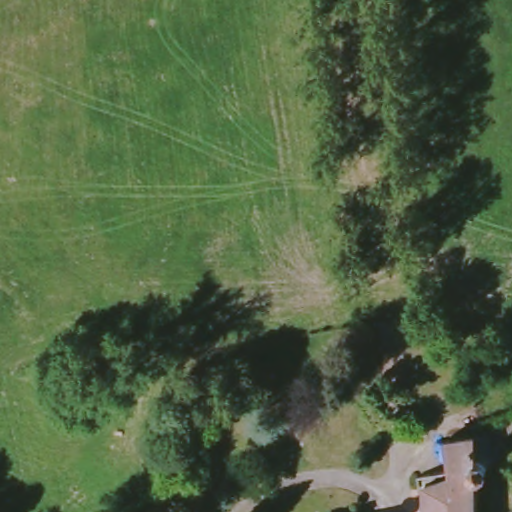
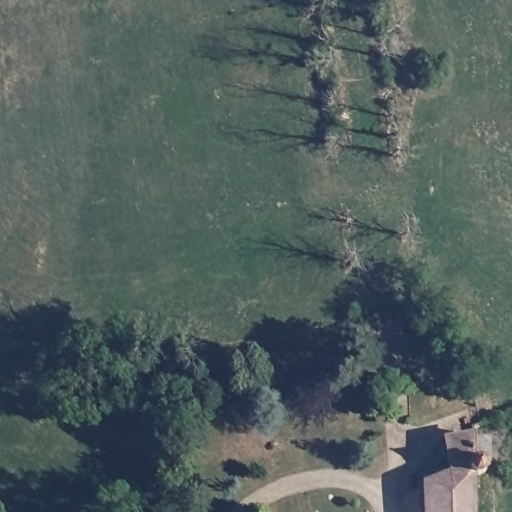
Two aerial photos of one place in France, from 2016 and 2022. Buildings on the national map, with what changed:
unchanged [(488,436),(487,475),(474,475),(475,512),(423,512),(424,492),(416,491),(418,471),(447,472),(448,435),(482,436),(488,436)]

